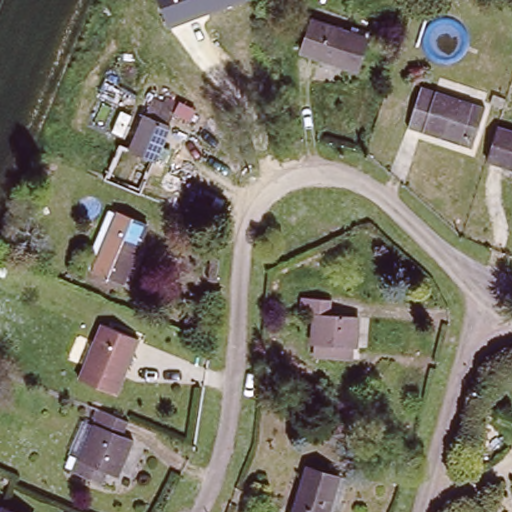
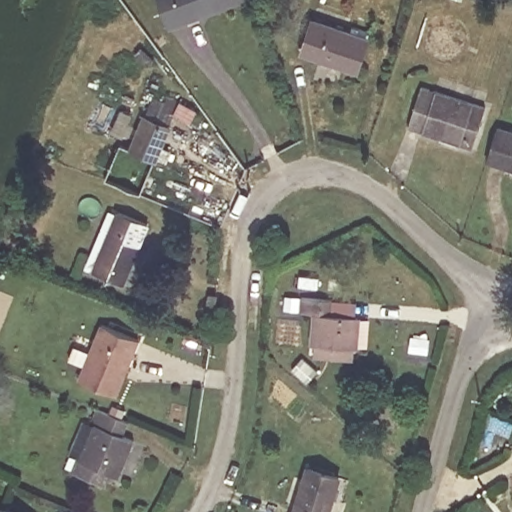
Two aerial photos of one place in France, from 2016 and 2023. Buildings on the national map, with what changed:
unchanged [(157,0),(243,0),(168,28),(157,0)]
unchanged [(354,26),(361,29),(372,33),(357,72),(301,48),(311,17),(351,33),(354,26)]
unchanged [(421,85),(487,104),(476,142),(409,123),(421,85)]
unchanged [(164,106),(169,94),(181,99),(158,158),(131,146),(149,100),(164,106)]
unchanged [(512,134),(512,163),(493,156),(502,130),(512,134)]
unchanged [(110,205),(143,218),(122,281),(89,269),(110,205)]
unchanged [(362,359),(313,356),(314,316),(302,315),(301,298),(336,297),(334,315),(364,315),(362,359)]
unchanged [(133,342),(113,396),(78,381),(99,329),(133,342)]
unchanged [(118,414),(111,433),(123,437),(109,472),(101,470),(96,483),(67,472),(92,404),(118,414)]
unchanged [(339,474),(326,512),(294,512),(309,464),(339,474)]
unchanged [(21,512),(0,512),(0,508),(1,505),(21,512)]

